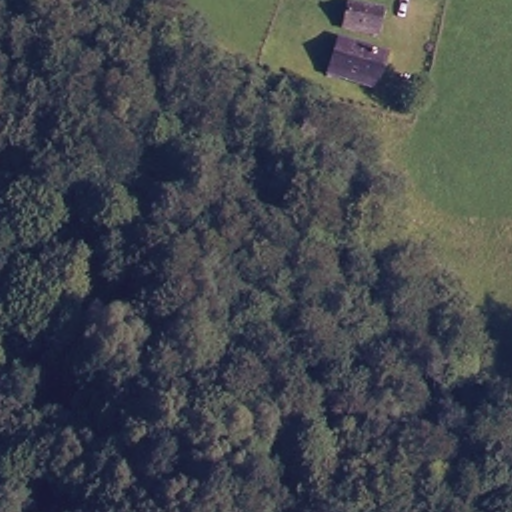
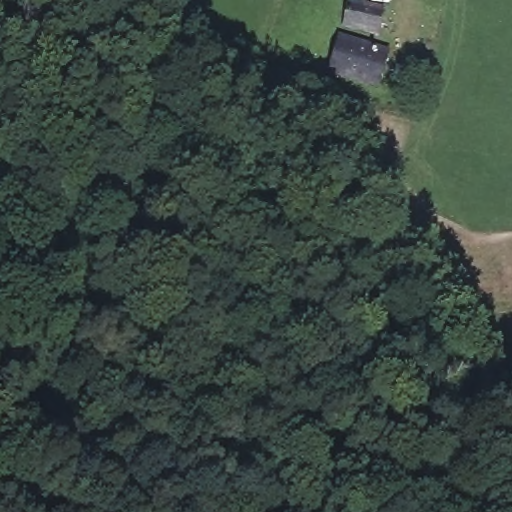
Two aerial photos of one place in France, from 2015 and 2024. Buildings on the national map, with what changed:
unchanged [(351,23),(354,10),(348,8),(350,0),(353,0),(389,6),(385,29),(351,23)]
unchanged [(340,31),(389,46),(377,80),(326,64),(340,31)]

